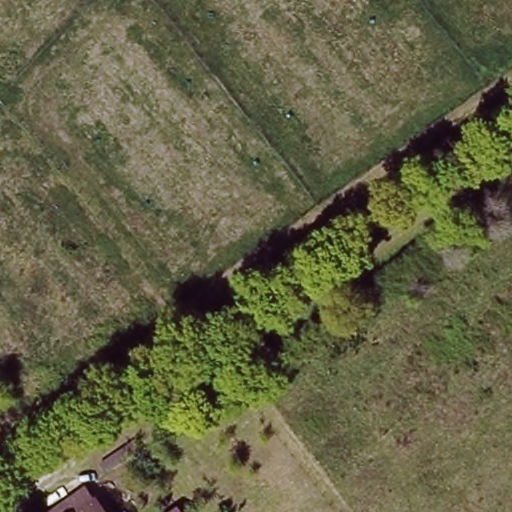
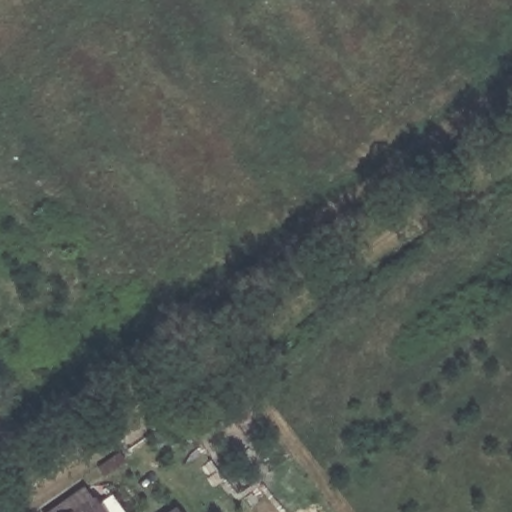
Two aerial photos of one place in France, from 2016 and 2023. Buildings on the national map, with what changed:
unchanged [(92,512),(62,512),(82,497),(92,512)]
unchanged [(181,512),(166,512),(176,505),(181,512)]

